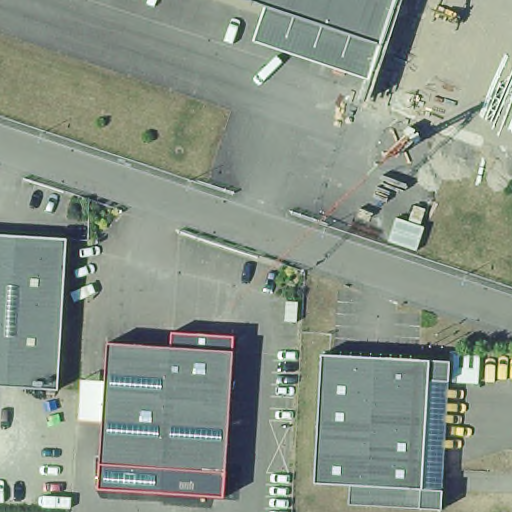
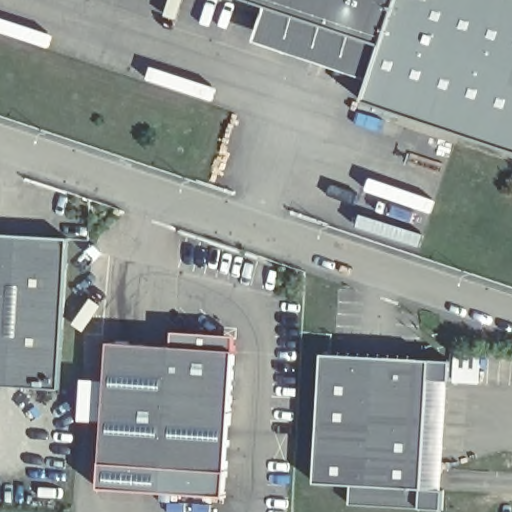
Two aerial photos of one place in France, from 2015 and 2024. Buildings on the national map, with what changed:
unchanged [(383,50),(365,83),(250,44),(262,11),(230,0),(391,0),(375,47),(383,50)]
new [(365,83),(383,50),(375,47),(391,0),(512,0),(512,152),(360,99),(365,83)]
unchanged [(55,387),(0,387),(0,238),(64,241),(55,387)]
unchanged [(220,473),(100,466),(94,449),(104,343),(228,352),(220,473)]
unchanged [(434,512),(409,512),(340,506),(339,489),(304,487),(312,352),(448,361),(434,512)]

